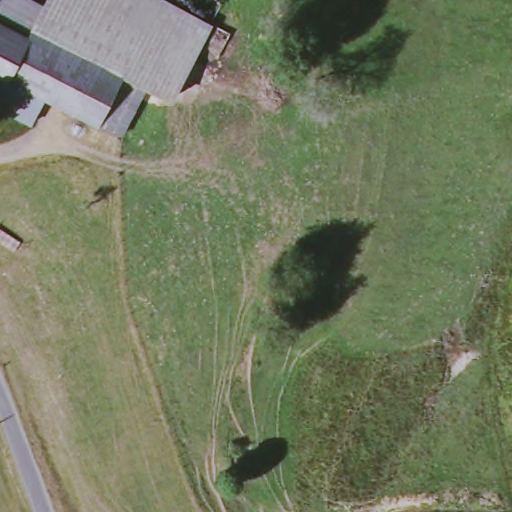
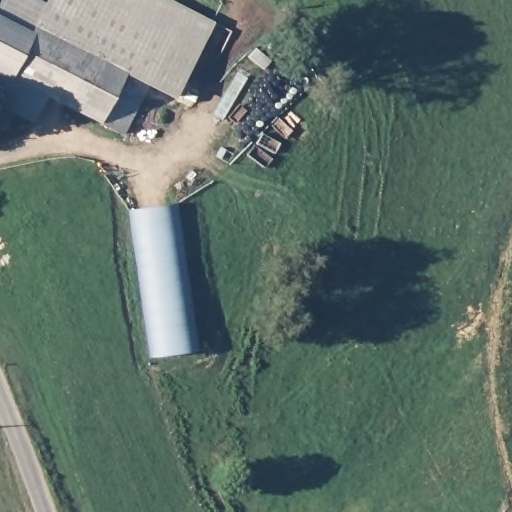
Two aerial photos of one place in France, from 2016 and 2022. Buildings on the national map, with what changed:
unchanged [(192,15),(157,89),(131,76),(107,127),(0,77),(0,0),(161,0),(192,15)]
new [(200,349),(152,357),(129,208),(177,202),(200,349)]

